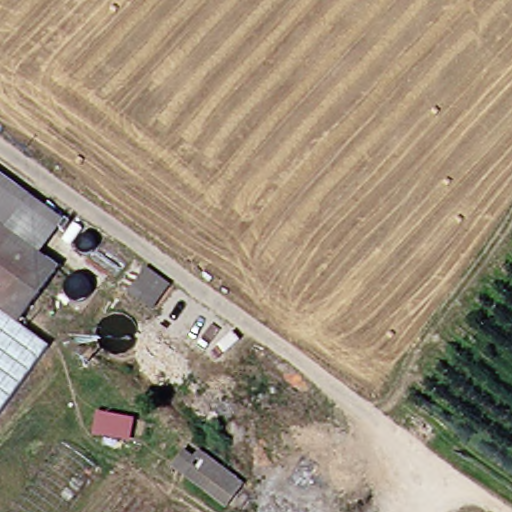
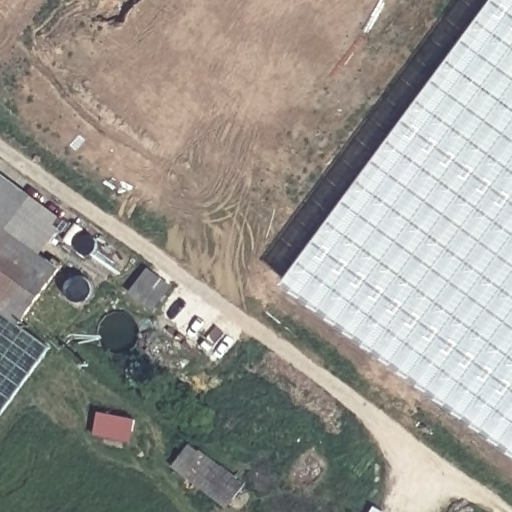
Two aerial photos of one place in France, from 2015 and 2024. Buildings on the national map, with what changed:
new [(281,277),(484,0),(512,0),(512,450),(281,277)]
unchanged [(35,258),(0,232),(0,180),(60,224),(35,258)]
unchanged [(56,273),(15,331),(0,321),(0,232),(35,258),(56,273)]
new [(174,286),(154,312),(129,293),(150,268),(174,286)]
unchanged [(42,352),(0,410),(0,321),(15,331),(42,352)]
unchanged [(185,446),(236,485),(220,508),(165,469),(185,446)]

